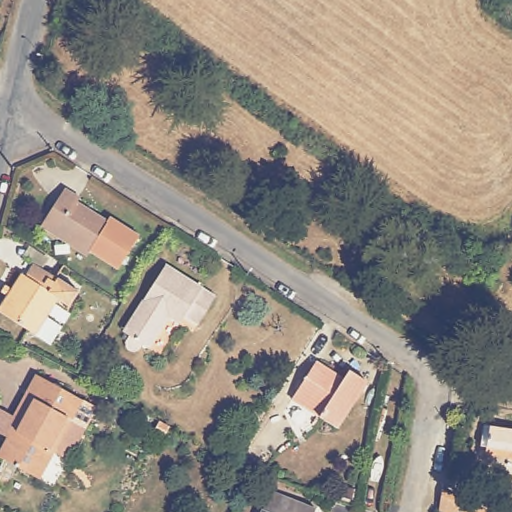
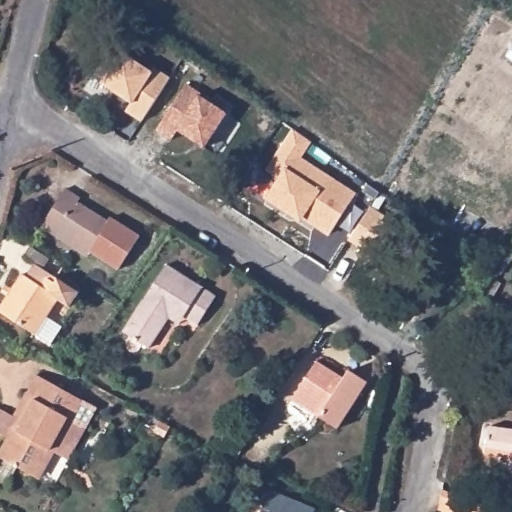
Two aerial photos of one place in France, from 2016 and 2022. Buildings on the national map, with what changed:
new [(121,53),(151,72),(154,68),(169,78),(141,121),(126,111),(131,103),(101,84),(121,53)]
new [(187,84),(201,94),(199,96),(227,114),(204,148),(178,130),(171,140),(156,131),(187,84)]
new [(292,128),(311,140),(303,156),(357,191),(329,236),(302,217),(300,221),(264,197),(277,176),(265,168),(292,128)]
unchanged [(56,237),(42,228),(65,189),(80,198),(78,202),(108,221),(110,217),(140,235),(120,269),(91,252),(89,256),(56,237)]
unchanged [(36,335),(0,313),(0,310),(23,272),(28,275),(35,264),(79,289),(71,304),(59,297),(48,315),(65,326),(55,345),(36,335)]
unchanged [(174,308),(152,349),(124,333),(164,266),(214,296),(199,323),(174,308)]
unchanged [(344,378),(349,370),(367,381),(341,427),(323,417),(326,411),(298,395),(317,362),(344,378)]
unchanged [(53,452),(40,479),(1,457),(12,438),(0,432),(0,408),(22,420),(34,399),(30,397),(40,377),(99,409),(89,430),(71,462),(58,454),(53,452)]
unchanged [(507,449),(481,444),(484,424),(509,429),(512,430),(512,452),(507,449)]
unchanged [(436,511),(442,489),(487,507),(490,512),(438,512),(436,511)]
unchanged [(273,495),(309,512),(264,512),(273,495)]

